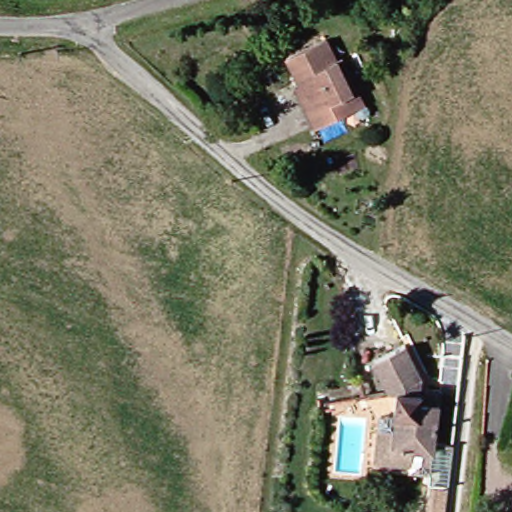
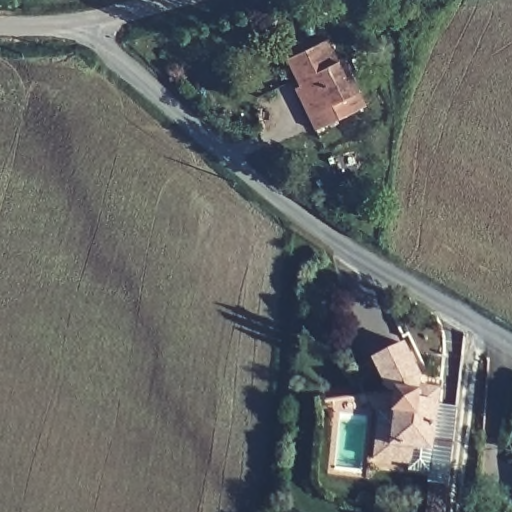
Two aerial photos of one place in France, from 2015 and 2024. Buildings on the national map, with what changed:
unchanged [(294,84),(281,60),(320,40),(332,64),(337,61),(353,92),(359,104),(341,113),(309,129),(303,116),(288,87),(294,84)]
unchanged [(408,348),(416,386),(420,386),(418,407),(437,409),(431,455),(389,451),(391,419),(386,419),(389,393),(384,393),(375,357),(408,348)]

